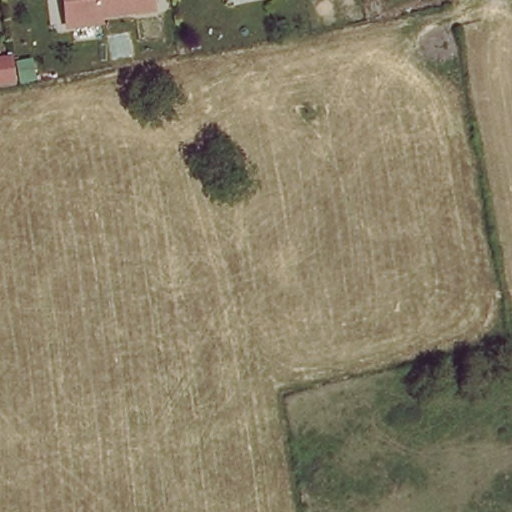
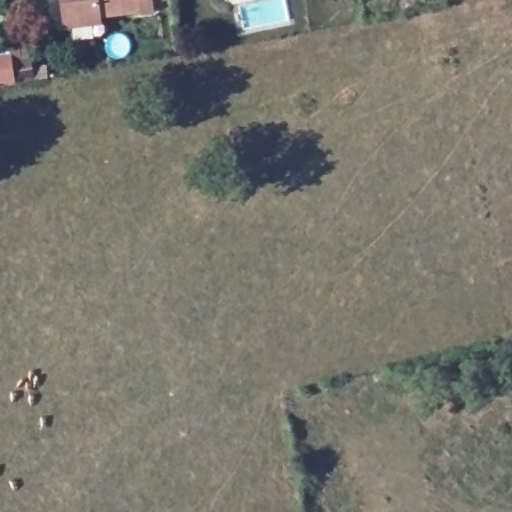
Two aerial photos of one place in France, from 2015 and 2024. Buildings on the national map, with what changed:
unchanged [(62,22),(59,0),(153,0),(155,11),(62,22)]

